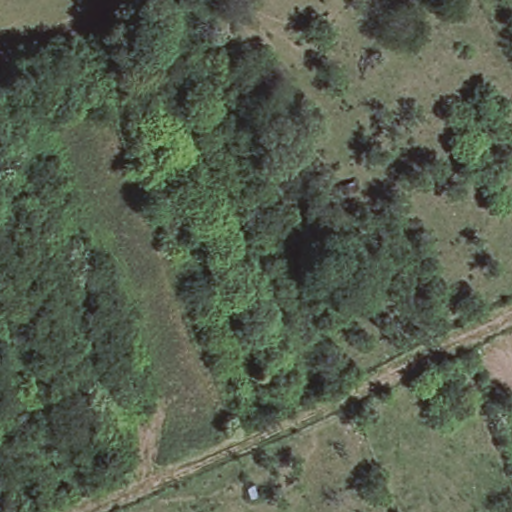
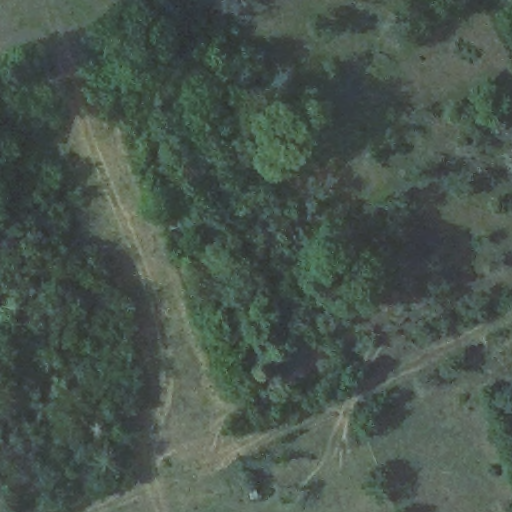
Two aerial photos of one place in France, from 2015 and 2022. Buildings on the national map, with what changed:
unchanged [(184,192),(197,223),(167,232),(153,204),(184,192)]
unchanged [(22,408),(34,427),(17,433),(9,416),(22,408)]

